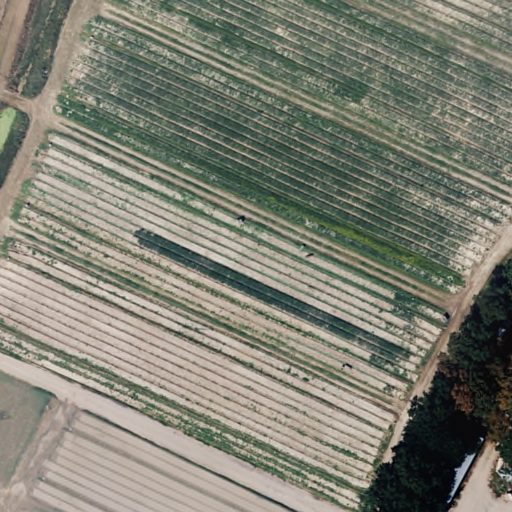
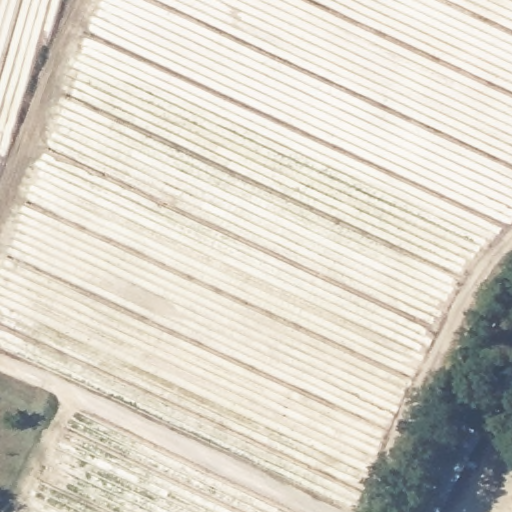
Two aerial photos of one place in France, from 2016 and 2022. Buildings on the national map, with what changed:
unchanged [(442,512),(410,512),(455,417),(483,430),(442,512)]

